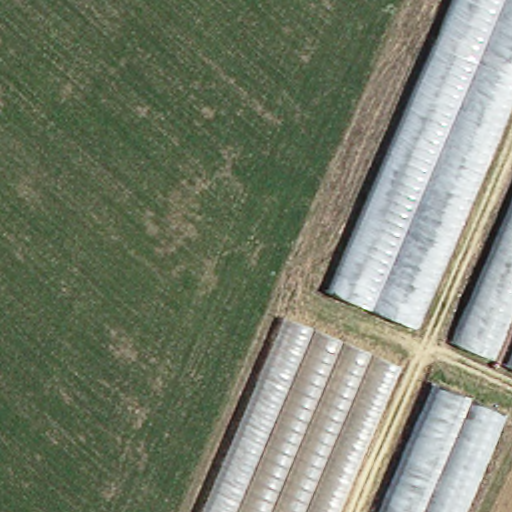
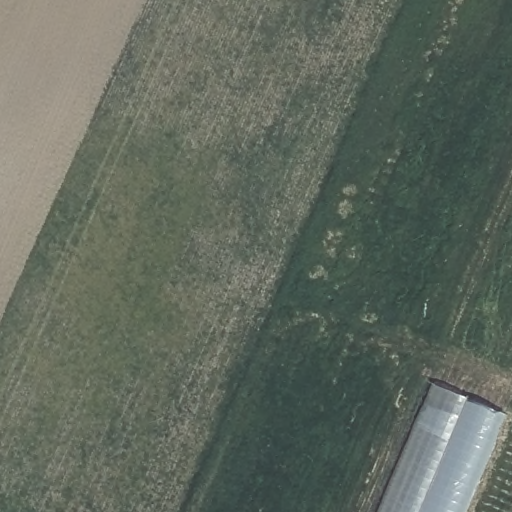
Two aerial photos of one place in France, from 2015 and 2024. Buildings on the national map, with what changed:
demolished [(450,0),(512,0),(512,99),(415,329),(323,292),(450,0)]
demolished [(454,342),(512,208),(512,316),(493,359),(454,342)]
demolished [(397,368),(335,512),(202,512),(283,323),(397,368)]
demolished [(512,341),(512,376),(499,370),(512,341)]
demolished [(458,512),(373,512),(434,375),(504,405),(458,512)]
new [(468,512),(378,512),(433,381),(509,414),(468,512)]

